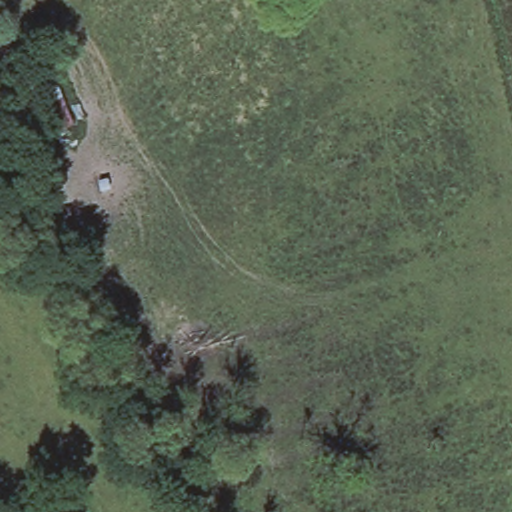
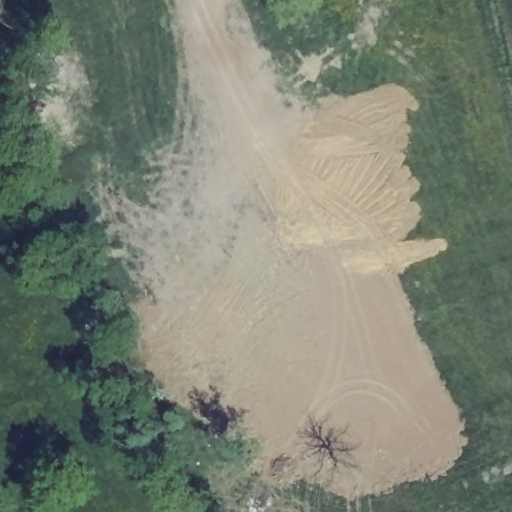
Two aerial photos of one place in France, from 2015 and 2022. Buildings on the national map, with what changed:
unchanged [(42,61),(71,126),(52,133),(23,66),(42,61)]

